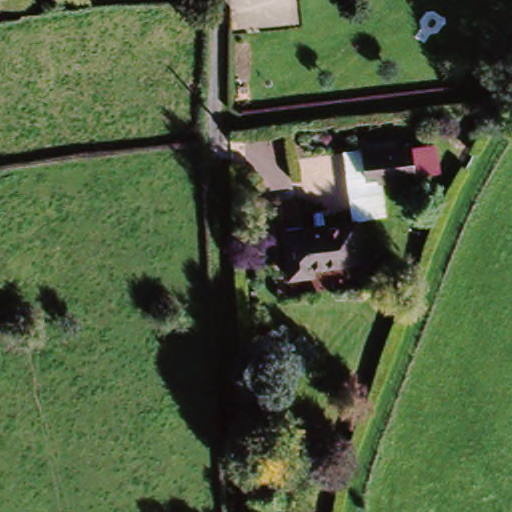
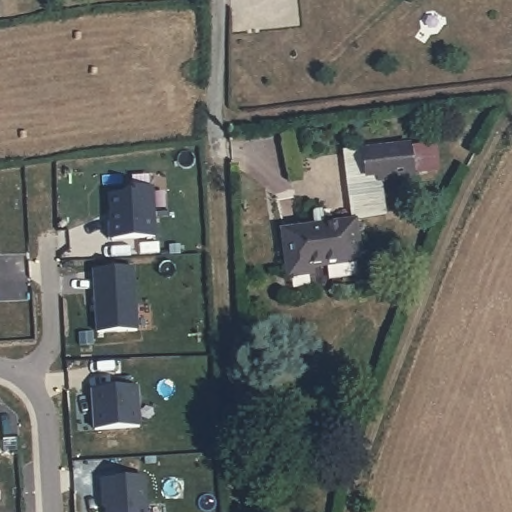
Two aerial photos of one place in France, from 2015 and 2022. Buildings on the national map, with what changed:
unchanged [(435,145),(438,175),(414,178),(379,184),(378,179),(365,181),(361,155),(410,148),(435,145)]
unchanged [(383,216),(352,220),(345,157),(361,155),(365,181),(378,179),(379,184),(383,216)]
new [(152,184),(156,236),(110,240),(107,192),(152,184)]
unchanged [(353,224),(360,267),(308,275),(309,282),(283,286),(276,236),(353,224)]
new [(133,267),(136,330),(95,330),(91,266),(133,267)]
new [(136,386),(140,426),(95,432),(90,384),(136,386)]
new [(145,476),(146,512),(106,512),(105,504),(101,504),(100,478),(145,476)]

